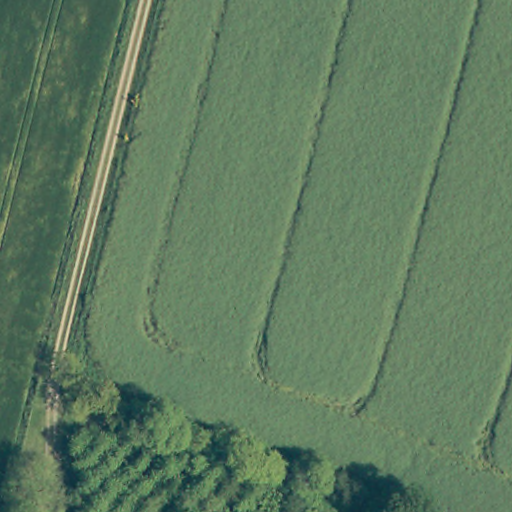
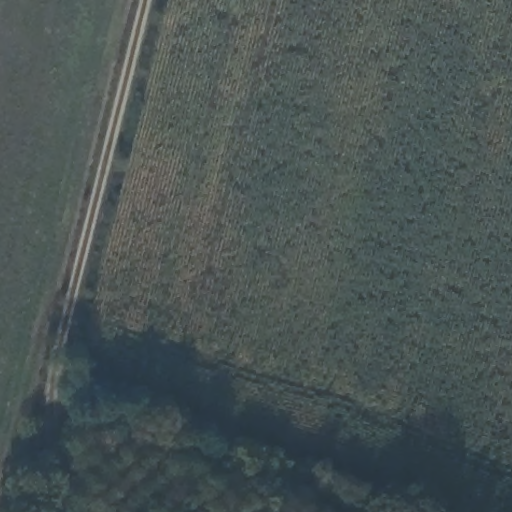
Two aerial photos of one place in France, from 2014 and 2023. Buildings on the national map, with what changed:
[]

